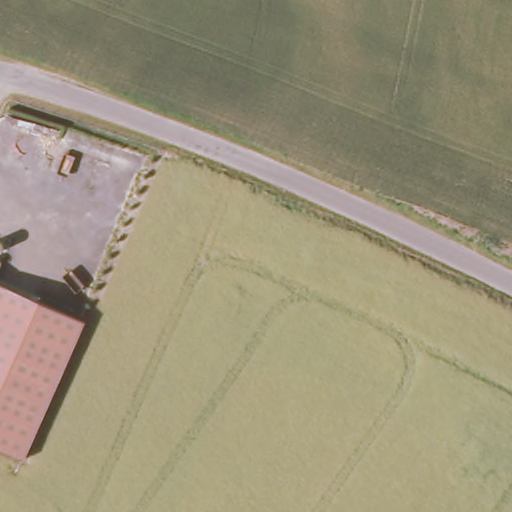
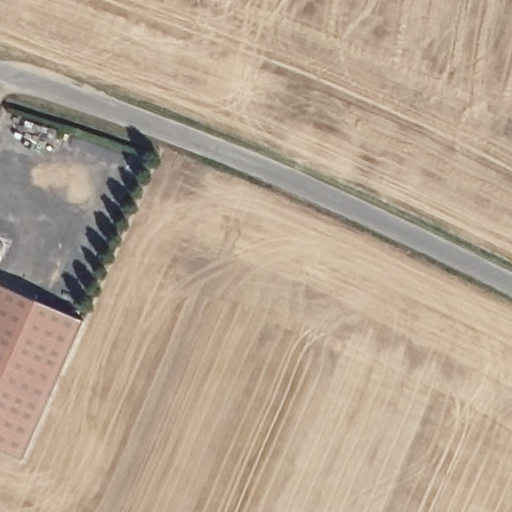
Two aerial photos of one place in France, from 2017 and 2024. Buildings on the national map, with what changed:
unchanged [(22,461),(0,451),(0,286),(82,322),(22,461)]

